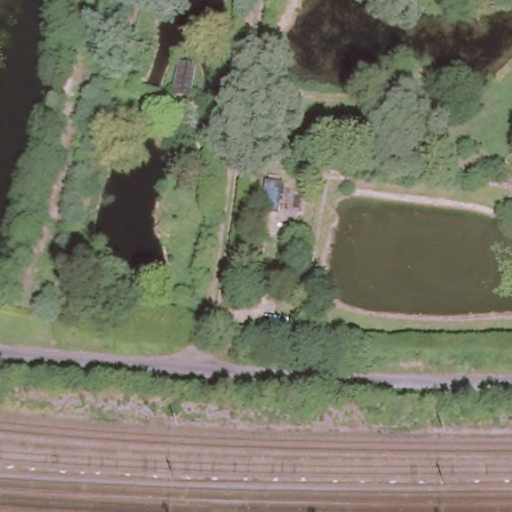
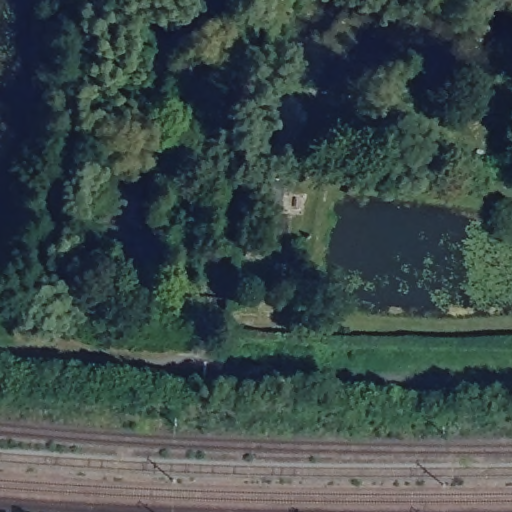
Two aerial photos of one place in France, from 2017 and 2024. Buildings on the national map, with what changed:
unchanged [(191,64),(189,93),(172,93),(173,62),(191,64)]

